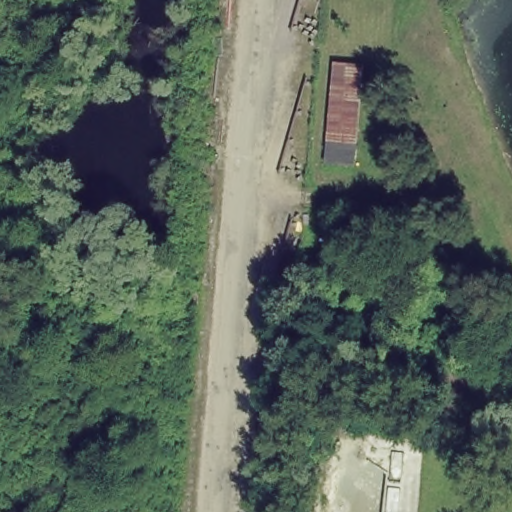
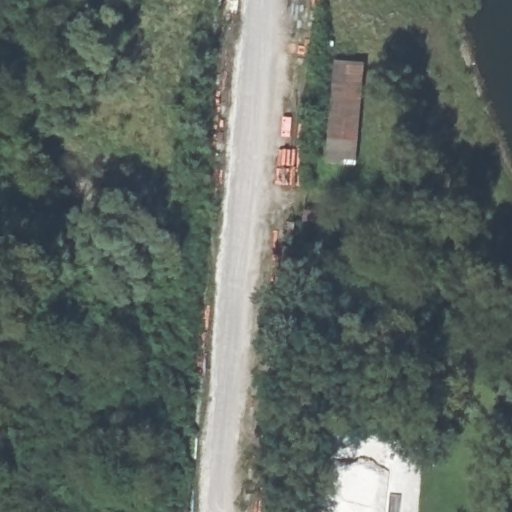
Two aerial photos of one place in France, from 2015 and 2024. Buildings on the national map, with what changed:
unchanged [(356,165),(325,163),(334,64),(364,66),(356,165)]

